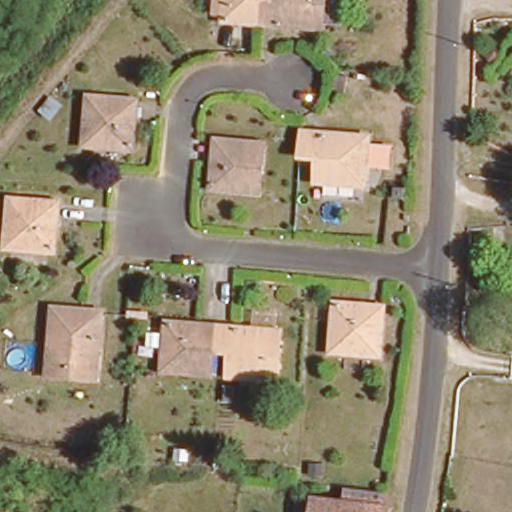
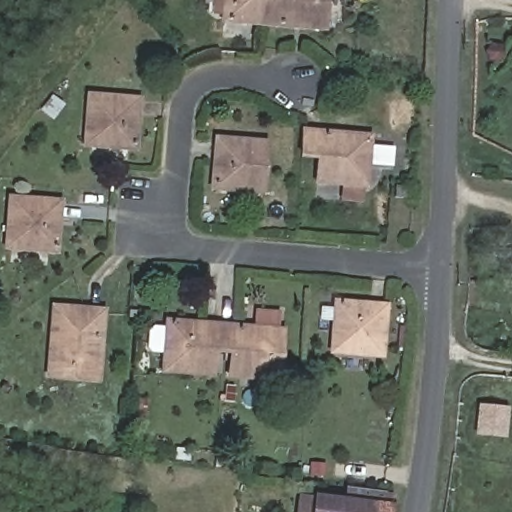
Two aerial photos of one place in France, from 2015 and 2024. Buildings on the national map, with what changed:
unchanged [(254,22),(220,19),(221,0),(323,0),(320,29),(254,22)]
unchanged [(56,96),(46,109),(36,101),(46,88),(56,96)]
unchanged [(140,101),(134,151),(85,146),(90,96),(140,101)]
unchanged [(366,187),(316,182),(318,158),(300,156),(302,131),(370,136),(366,187)]
unchanged [(256,187),(206,182),(211,132),(260,137),(256,187)]
unchanged [(400,185),(399,196),(388,194),(389,184),(400,185)]
unchanged [(54,248),(4,243),(8,193),(58,198),(54,248)]
unchanged [(378,350),(331,347),(333,298),(380,300),(378,350)]
unchanged [(99,308),(93,378),(43,373),(49,303),(99,308)]
unchanged [(213,320),(279,326),(275,376),(225,371),(226,355),(218,354),(210,353),(209,370),(159,365),(163,315),(213,320)]
new [(480,435),(483,409),(509,411),(506,437),(480,435)]
unchanged [(380,493),(390,495),(388,512),(297,512),(298,497),(311,498),(379,503),(380,493)]

